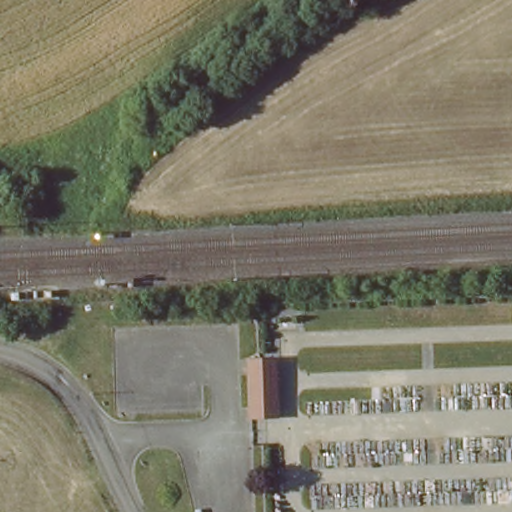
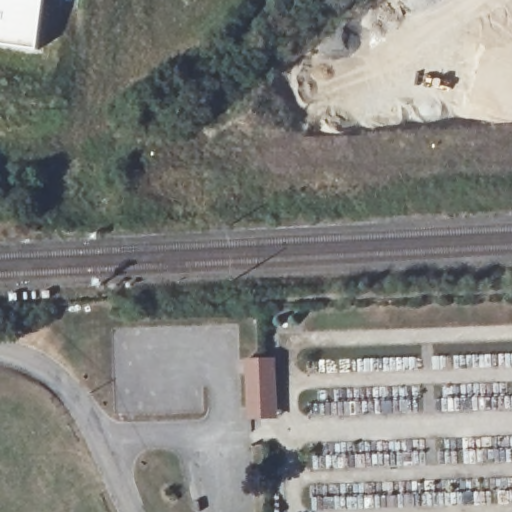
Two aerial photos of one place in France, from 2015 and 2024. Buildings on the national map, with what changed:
new [(45,0),(39,50),(0,45),(0,0),(45,0)]
unchanged [(263,418),(263,408),(261,359),(286,358),(288,408),(288,417),(263,418)]

